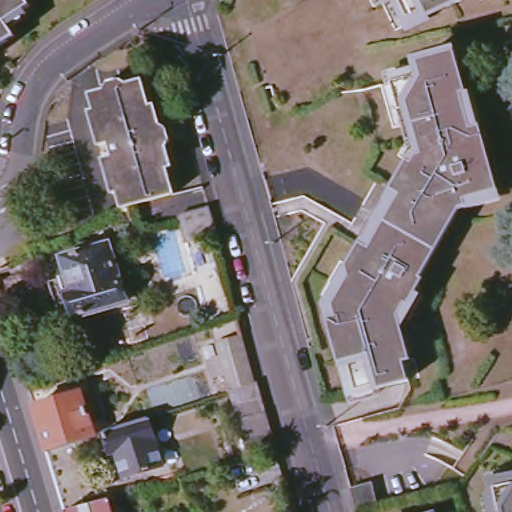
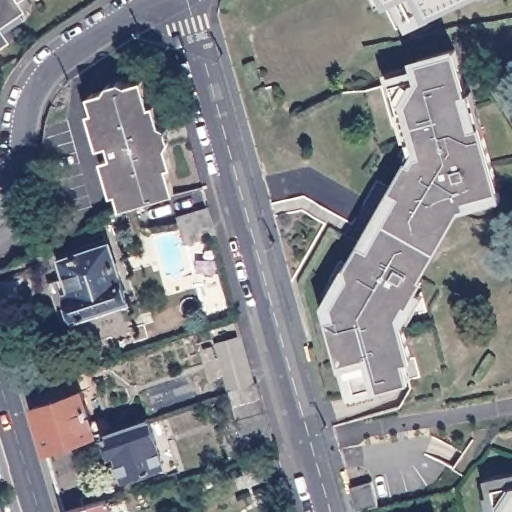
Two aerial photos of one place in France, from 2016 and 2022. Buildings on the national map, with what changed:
unchanged [(30,2),(5,16),(12,30),(0,36),(0,0),(29,0),(30,2)]
unchanged [(388,4),(386,0),(396,0),(388,4)]
unchanged [(428,19),(425,13),(407,21),(397,0),(468,0),(428,19)]
unchanged [(396,361),(402,380),(372,387),(371,382),(350,388),(342,358),(333,361),(321,317),(332,314),(328,302),(345,274),(342,263),(355,241),(366,247),(398,194),(387,188),(404,160),(419,169),(424,161),(430,159),(419,112),(409,115),(403,87),(433,80),(430,66),(468,57),(478,99),(472,100),(480,135),(490,133),(505,198),(471,206),(473,212),(467,214),(425,283),(423,282),(407,307),(399,302),(393,313),(405,358),(396,361)]
unchanged [(114,85),(115,82),(130,78),(133,80),(148,75),(154,99),(160,97),(166,119),(169,121),(173,136),(171,139),(178,161),(171,162),(180,190),(128,206),(127,206),(123,189),(117,190),(107,154),(116,152),(112,139),(103,141),(94,108),(100,107),(96,91),(114,85)]
unchanged [(179,219),(211,210),(219,237),(187,247),(179,219)]
unchanged [(114,242),(116,242),(132,298),(68,317),(57,280),(76,275),(70,255),(86,251),(84,245),(112,237),(114,242)]
unchanged [(35,292),(3,306),(0,298),(0,281),(27,271),(35,292)]
unchanged [(241,435),(237,420),(233,405),(230,391),(217,343),(244,336),(256,382),(259,381),(263,396),(268,411),(272,427),(276,441),(246,452),(241,435)]
unchanged [(96,437),(77,443),(48,452),(34,408),(82,393),(96,437)]
unchanged [(130,478),(122,453),(118,455),(112,433),(145,422),(155,419),(169,466),(130,478)]
unchanged [(356,512),(350,488),(372,482),(378,505),(356,512)]
unchanged [(512,482),(512,512),(504,512),(498,486),(512,482)]
unchanged [(69,512),(109,500),(113,512),(69,512)]

